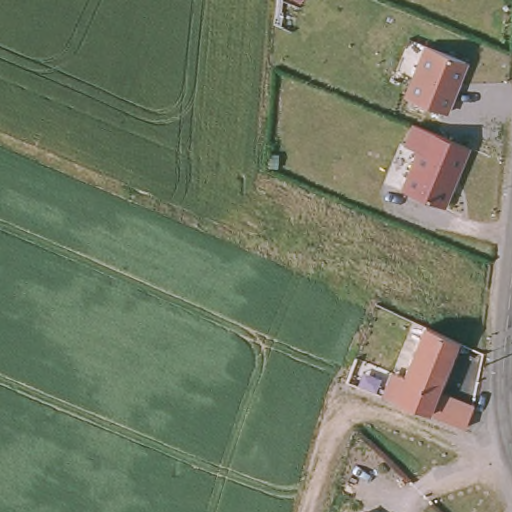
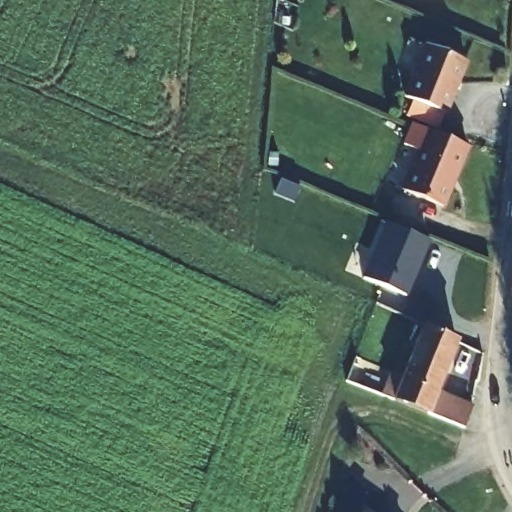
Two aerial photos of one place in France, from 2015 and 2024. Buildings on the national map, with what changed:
unchanged [(409,118),(416,101),(408,98),(430,48),(469,64),(446,114),(440,131),(409,118)]
unchanged [(442,208),(402,192),(420,152),(405,146),(415,125),(467,148),(442,208)]
new [(276,167),(267,167),(268,154),(277,154),(276,167)]
new [(370,258),(373,259),(387,224),(427,240),(404,295),(361,278),(370,258)]
unchanged [(456,343),(430,406),(458,418),(455,429),(393,403),(425,327),(456,343)]

